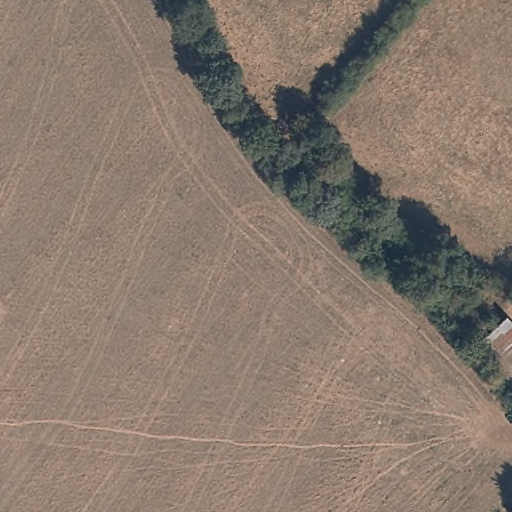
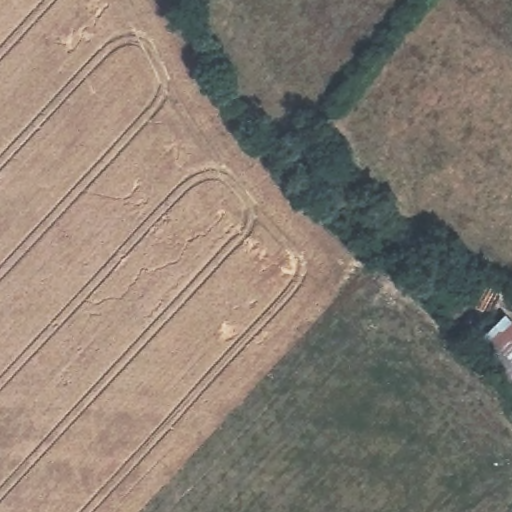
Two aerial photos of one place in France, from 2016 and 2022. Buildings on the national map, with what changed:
unchanged [(475,346),(506,319),(512,326),(512,389),(475,346)]

